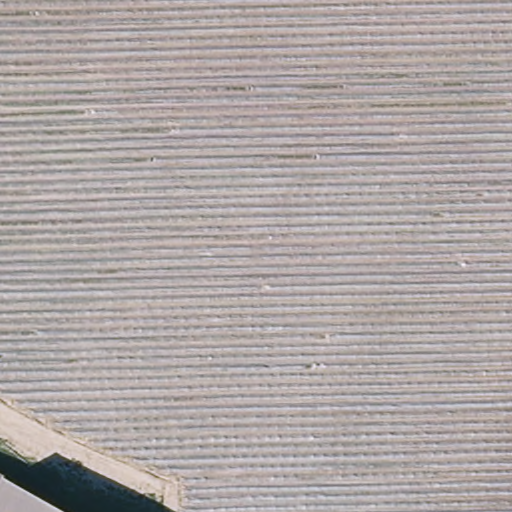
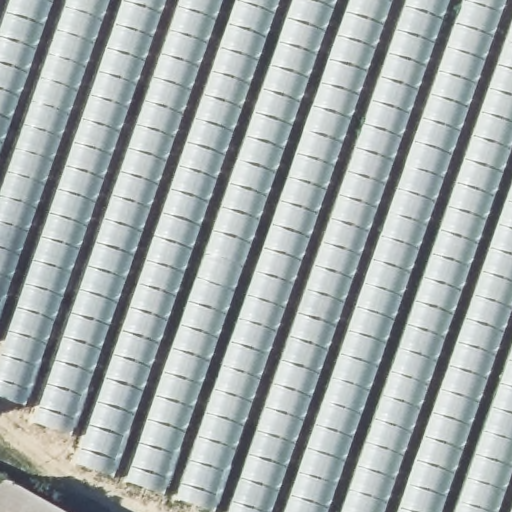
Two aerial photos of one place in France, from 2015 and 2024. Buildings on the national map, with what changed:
new [(76,466),(85,444),(36,424),(39,417),(0,400),(0,356),(3,348),(0,347),(0,0),(512,0),(512,512),(207,512),(76,466)]
unchanged [(0,477),(4,479),(0,487),(0,477)]
unchanged [(58,512),(0,512),(0,487),(4,479),(58,512)]

